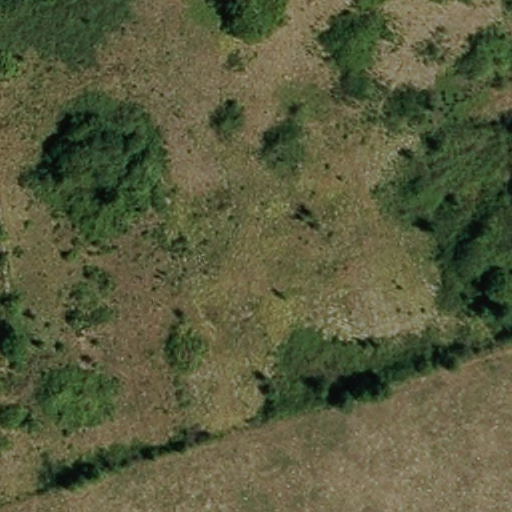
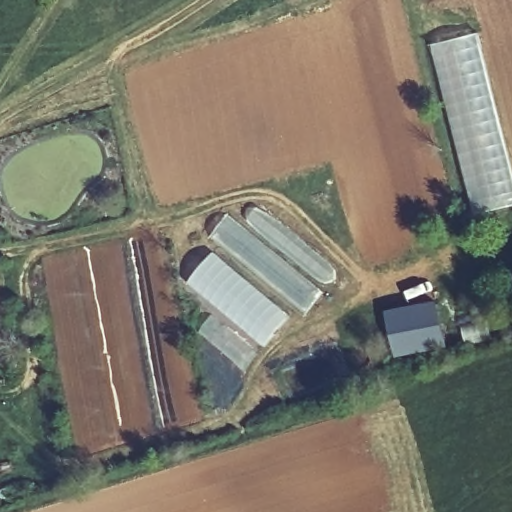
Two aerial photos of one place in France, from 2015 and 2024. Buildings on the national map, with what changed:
new [(475,216),(432,45),(481,33),(512,164),(512,207),(475,216)]
new [(320,290),(324,293),(308,311),(298,304),(265,346),(188,281),(221,245),(210,236),(228,215),(242,227),(260,206),(339,269),(320,290)]
new [(448,348),(395,357),(388,310),(438,301),(448,348)]

